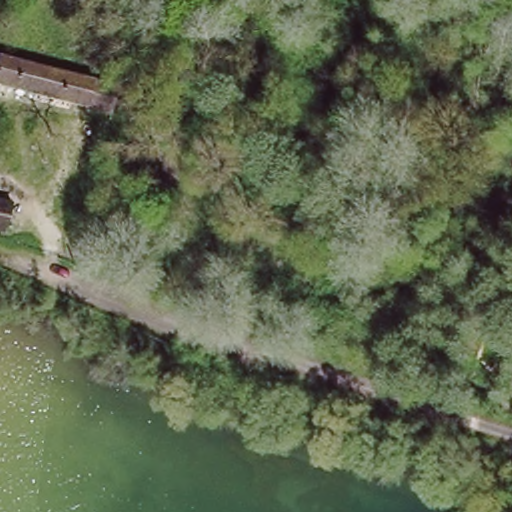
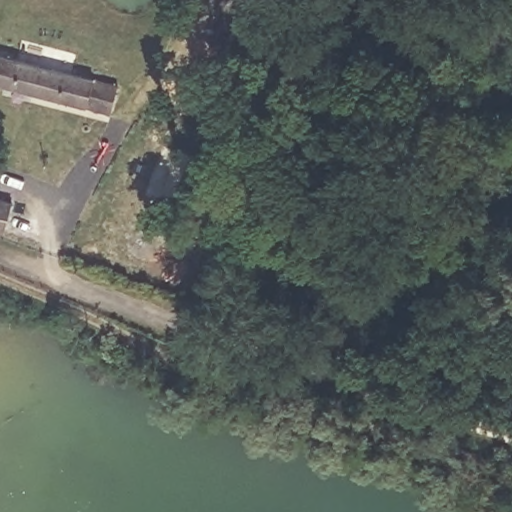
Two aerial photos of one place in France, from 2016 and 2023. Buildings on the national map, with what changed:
unchanged [(97,115),(0,84),(0,67),(6,69),(10,55),(107,86),(97,115)]
unchanged [(0,232),(0,207),(12,210),(7,233),(0,232)]

